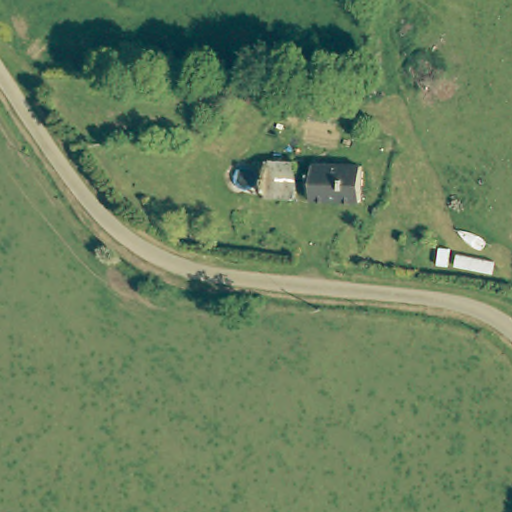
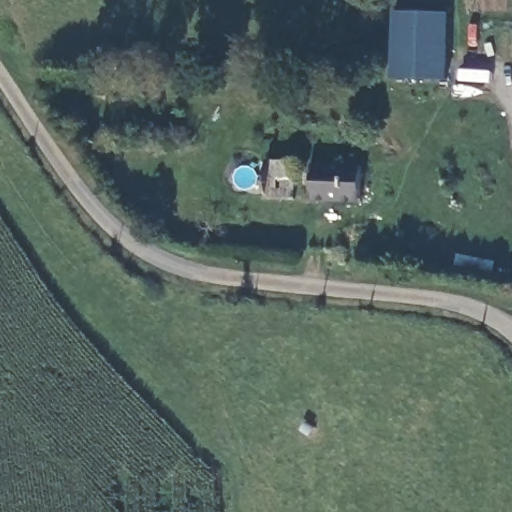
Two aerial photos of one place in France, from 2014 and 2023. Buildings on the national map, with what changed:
new [(396,14),(452,14),(451,80),(393,80),(396,14)]
unchanged [(267,162),(302,164),(299,201),(265,200),(267,162)]
unchanged [(313,202),(313,162),(360,164),(360,203),(313,202)]

